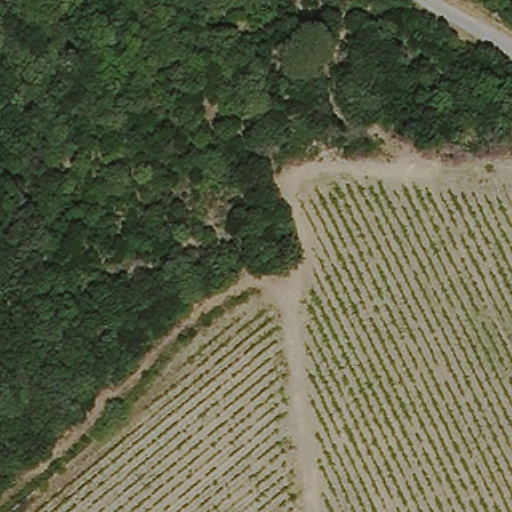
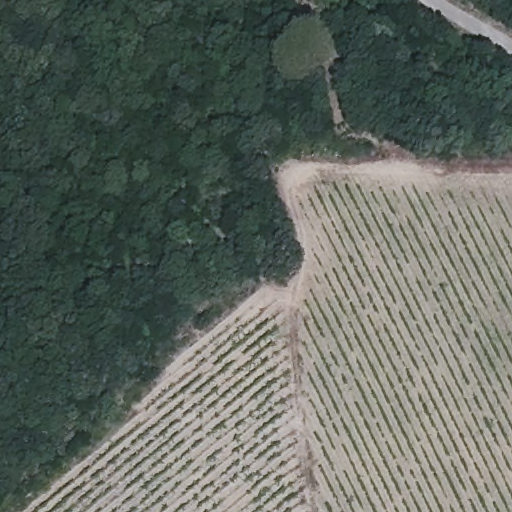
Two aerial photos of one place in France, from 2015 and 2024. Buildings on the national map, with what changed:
[]

